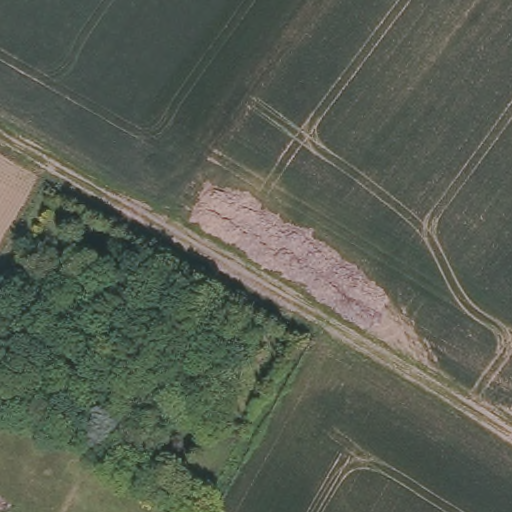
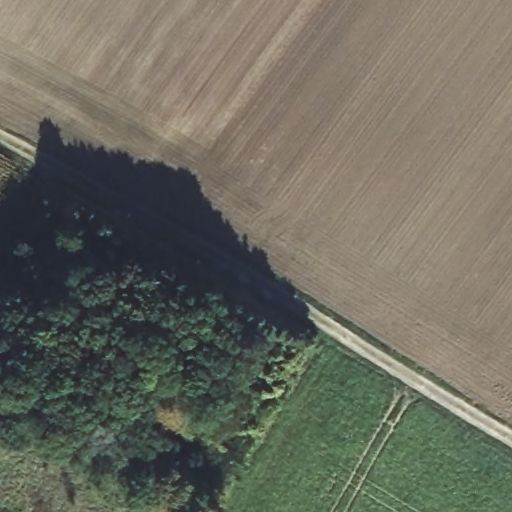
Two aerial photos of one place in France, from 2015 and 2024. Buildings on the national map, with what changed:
unchanged [(120,424),(110,418),(97,410),(112,389),(123,396),(134,402),(120,424)]

